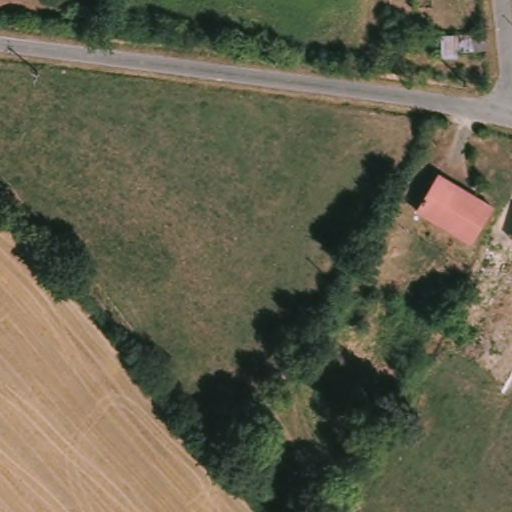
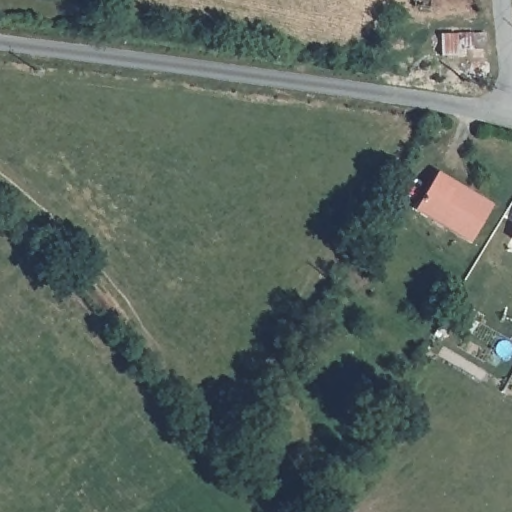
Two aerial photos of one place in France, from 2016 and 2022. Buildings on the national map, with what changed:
unchanged [(424,1),(424,10),(415,10),(415,1),(424,1)]
unchanged [(486,37),(487,51),(457,52),(457,60),(445,60),(443,39),(486,37)]
unchanged [(437,173),(489,204),(466,241),(414,211),(437,173)]

